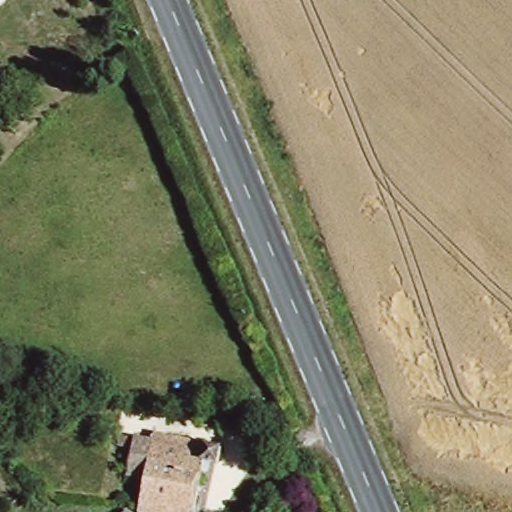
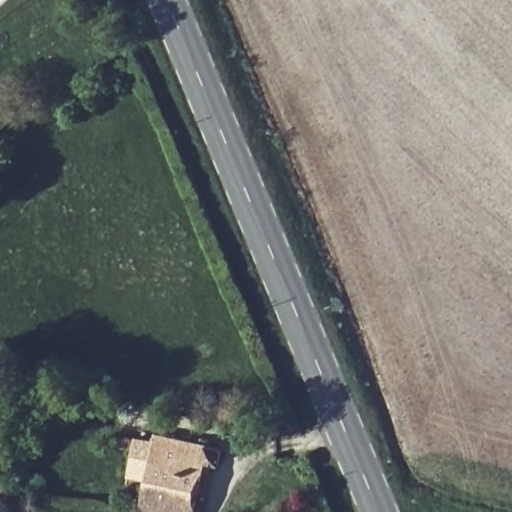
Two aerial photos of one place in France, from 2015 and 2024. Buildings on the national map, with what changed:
unchanged [(134,427),(155,432),(142,486),(124,482),(134,427)]
unchanged [(222,449),(218,467),(201,464),(194,512),(143,512),(137,509),(142,486),(155,432),(222,449)]
unchanged [(129,504),(137,509),(140,512),(121,512),(129,504)]

